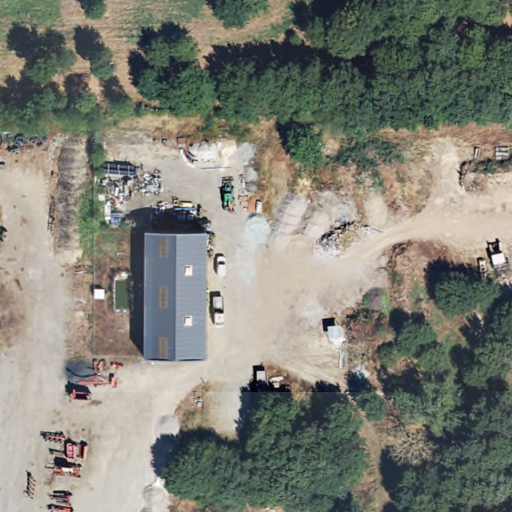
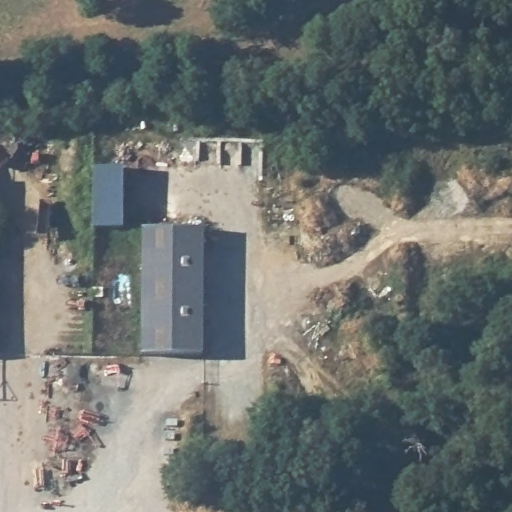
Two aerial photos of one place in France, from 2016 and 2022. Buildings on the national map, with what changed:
new [(93,167),(122,167),(122,230),(92,229),(93,167)]
unchanged [(204,227),(207,353),(146,355),(142,228),(204,227)]

